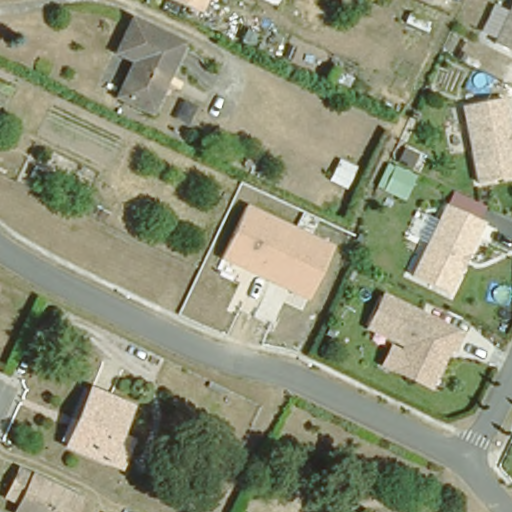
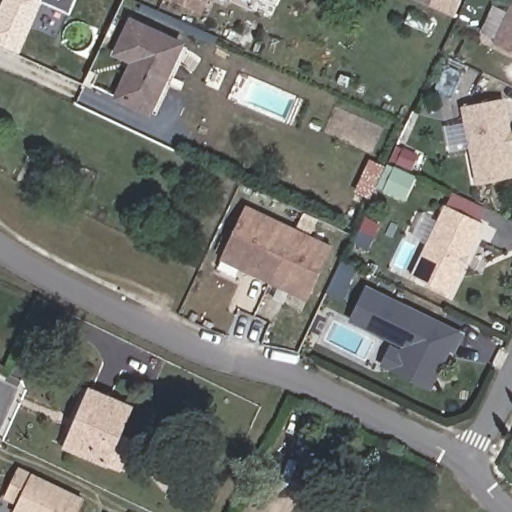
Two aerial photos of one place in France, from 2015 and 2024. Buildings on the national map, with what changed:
new [(0,46),(0,6),(3,0),(76,0),(70,15),(43,3),(20,55),(0,46)]
unchanged [(185,0),(198,0),(195,5),(185,0)]
unchanged [(440,0),(437,8),(419,0),(440,0)]
unchanged [(512,5),(512,56),(493,47),(512,5)]
unchanged [(179,43),(149,109),(119,94),(136,57),(116,46),(128,19),(179,43)]
unchanged [(512,176),(476,181),(462,104),(502,97),(512,155),(512,176)]
unchanged [(47,160),(42,171),(29,165),(33,154),(47,160)]
new [(387,168),(412,180),(403,197),(379,185),(387,168)]
unchanged [(449,291),(412,273),(446,202),(483,220),(449,291)]
unchanged [(310,303),(221,260),(248,205),(334,245),(310,303)]
unchanged [(461,335),(453,350),(446,346),(442,355),(443,360),(430,387),(394,370),(406,345),(369,327),(384,296),(461,335)]
unchanged [(70,443),(94,389),(132,407),(120,435),(107,461),(70,443)]
unchanged [(16,508),(21,498),(7,491),(19,468),(20,466),(81,498),(81,499),(74,512),(22,512),(16,508)]

